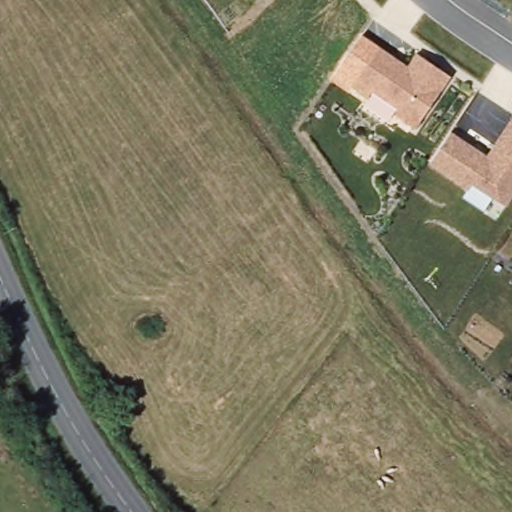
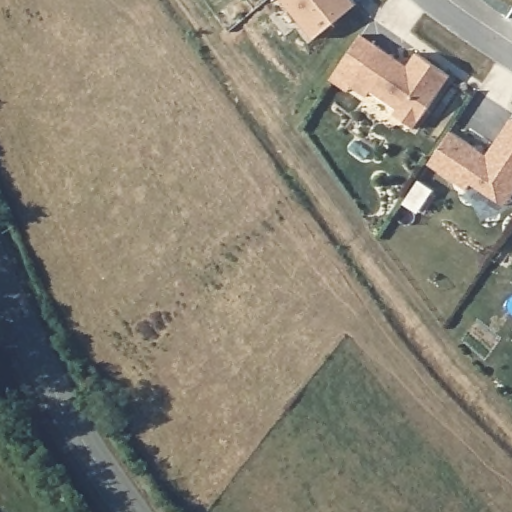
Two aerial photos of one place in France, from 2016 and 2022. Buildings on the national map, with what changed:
new [(354,6),(312,41),(279,0),(350,0),(354,6)]
unchanged [(408,70),(417,56),(449,77),(413,133),(392,120),(397,114),(371,97),(367,101),(351,90),(378,50),(408,70)]
unchanged [(510,120),(512,121),(512,194),(503,208),(469,185),(465,190),(427,165),(449,131),(486,155),(510,120)]

